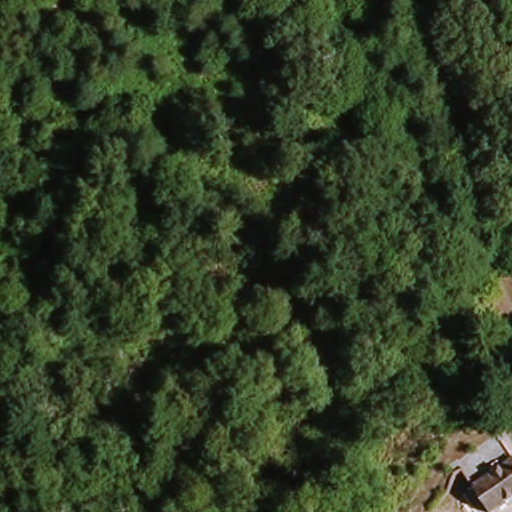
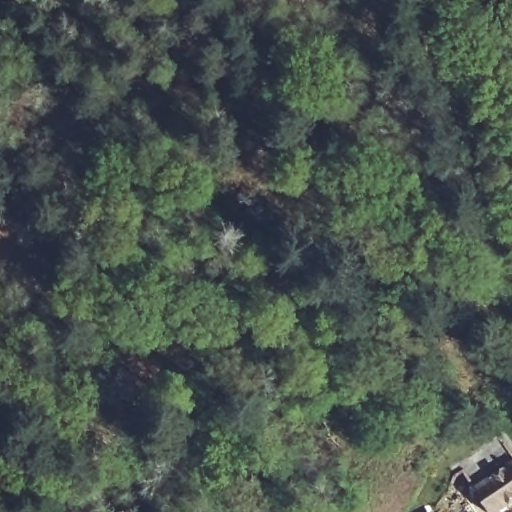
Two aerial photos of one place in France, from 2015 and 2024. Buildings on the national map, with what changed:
unchanged [(495,512),(492,512),(477,492),(512,466),(512,500),(495,512)]

